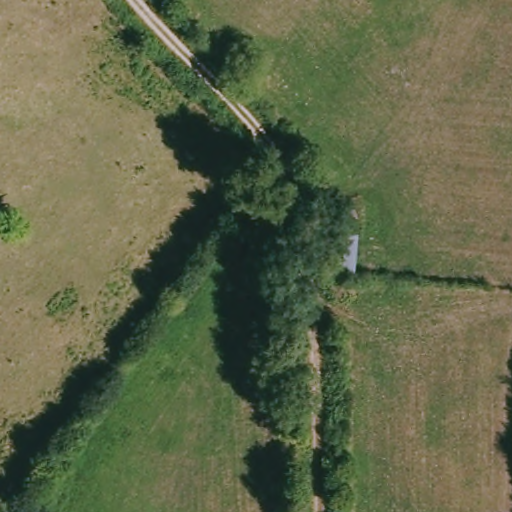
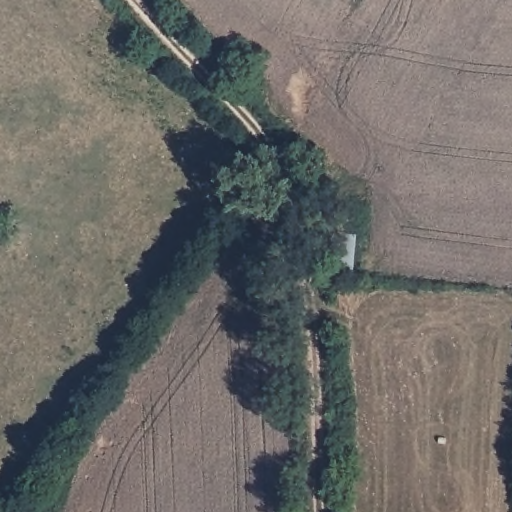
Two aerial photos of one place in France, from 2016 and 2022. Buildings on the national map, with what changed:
unchanged [(331,231),(364,234),(361,277),(329,273),(331,231)]

